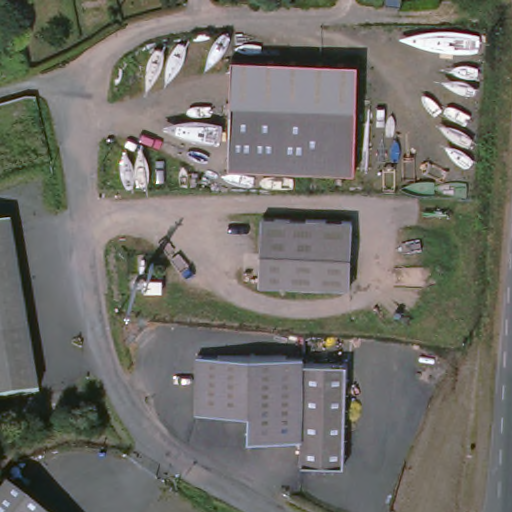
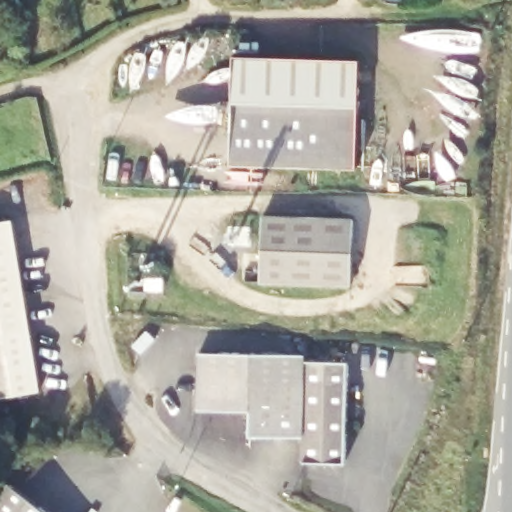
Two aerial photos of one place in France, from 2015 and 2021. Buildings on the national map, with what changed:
unchanged [(398,6),(385,5),(385,0),(401,0),(400,5),(398,6)]
unchanged [(231,59),(359,63),(357,108),(231,104),(231,59)]
unchanged [(231,104),(357,108),(354,172),(229,169),(231,104)]
unchanged [(262,219),(352,223),(350,287),(259,285),(262,219)]
unchanged [(9,222),(39,393),(0,400),(0,224),(9,222)]
unchanged [(196,355),(304,356),(303,363),(347,365),(345,465),(303,464),(303,440),(249,439),(249,414),(195,412),(196,355)]
unchanged [(9,486),(43,512),(0,512),(0,498),(9,486)]

